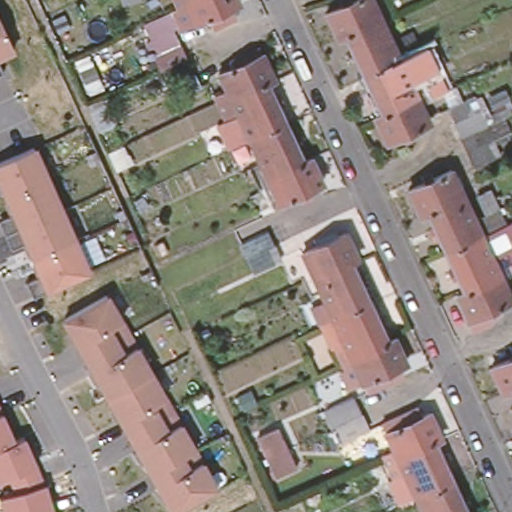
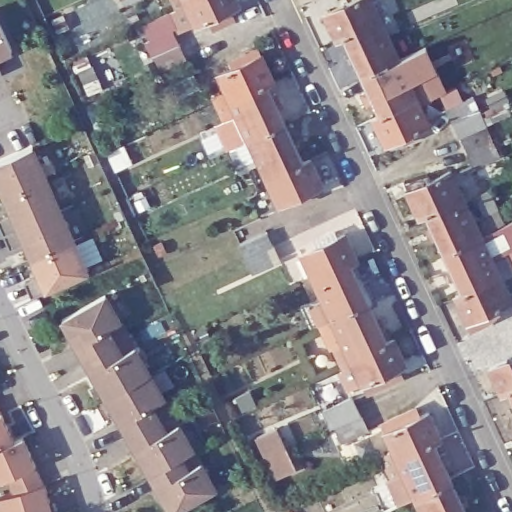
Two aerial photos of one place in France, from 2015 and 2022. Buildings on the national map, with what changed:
unchanged [(237,6),(227,10),(231,21),(213,28),(210,28),(207,20),(195,25),(193,25),(192,21),(175,28),(167,12),(174,9),(170,0),(235,0),(237,6)]
unchanged [(349,46),(341,49),(330,25),(372,5),(384,29),(349,46)]
unchanged [(0,54),(0,27),(10,49),(0,54)]
unchanged [(367,84),(349,46),(384,29),(391,45),(402,69),(367,84)]
unchanged [(185,62),(159,73),(151,59),(145,44),(171,33),(178,48),(184,60),(185,62)]
unchanged [(215,119),(222,116),(214,97),(212,94),(226,89),(217,70),(232,64),(229,58),(247,50),(249,56),(260,51),(272,76),(265,79),(284,119),(285,121),(302,158),(267,174),(260,159),(248,135),(227,145),(215,119)]
unchanged [(430,60),(435,74),(415,82),(410,69),(430,60)]
unchanged [(0,73),(0,69),(2,72),(0,73)]
unchanged [(427,136),(389,154),(377,128),(385,124),(369,88),(367,84),(402,69),(413,92),(427,86),(435,106),(435,108),(423,114),(432,133),(427,136)]
unchanged [(192,76),(197,90),(172,102),(165,87),(192,76)]
unchanged [(467,152),(460,137),(454,122),(447,108),(472,97),(478,111),(485,125),(492,141),(500,156),(475,168),(467,152)]
unchanged [(9,196),(2,179),(0,180),(0,162),(37,146),(50,177),(9,196)]
unchanged [(302,158),(310,154),(320,179),(279,200),(267,174),(302,158)]
unchanged [(425,213),(418,216),(407,191),(450,171),(462,196),(425,213)]
unchanged [(9,196),(50,177),(64,208),(53,214),(8,234),(2,219),(17,212),(9,196)]
unchanged [(480,235),(444,252),(443,249),(425,213),(462,196),(470,213),(480,235)]
unchanged [(53,214),(64,208),(77,239),(37,257),(30,241),(14,248),(8,234),(53,214)]
unchanged [(246,258),(245,256),(239,244),(265,232),(272,246),(280,261),(252,273),(246,258)]
unchanged [(301,255),(344,235),(355,260),(349,263),(312,279),(301,255)]
unchanged [(444,252),(480,235),(491,259),(499,276),(463,291),(444,252)]
unchanged [(44,274),(37,257),(77,239),(92,271),(35,296),(29,281),(44,274)]
unchanged [(349,263),(367,302),(331,319),(319,294),(312,279),(349,263)]
unchanged [(455,295),(463,291),(499,276),(510,300),(497,307),(499,311),(484,324),(472,329),(467,320),(455,295)]
unchanged [(83,306),(105,294),(127,333),(112,341),(84,357),(62,318),(83,306)]
unchanged [(385,341),(350,359),(342,344),(331,319),(367,302),(368,305),(385,341)]
unchanged [(135,380),(105,396),(84,357),(112,341),(127,333),(149,372),(135,380)]
unchanged [(365,393),(360,383),(347,389),(338,370),(343,368),(352,364),(350,359),(385,341),(392,338),(404,364),(394,368),(398,377),(365,393)]
unchanged [(508,389),(500,392),(490,367),(512,357),(512,387),(508,389)]
unchanged [(149,423),(127,435),(105,396),(135,380),(149,372),(170,410),(149,423)]
unchanged [(508,389),(512,387),(512,398),(508,389)]
unchanged [(340,443),(333,426),(330,428),(322,410),(350,397),(359,414),(366,429),(340,443)]
unchanged [(156,470),(150,473),(127,435),(149,423),(170,410),(192,449),(156,470)]
unchanged [(402,473),(390,478),(382,461),(380,457),(392,451),(385,434),(380,426),(414,410),(417,418),(427,414),(439,438),(432,442),(449,478),(450,481),(414,497),(402,473)]
unchanged [(0,446),(0,411),(13,440),(0,446)]
unchanged [(16,438),(22,436),(43,482),(14,491),(7,476),(0,480),(0,446),(13,440),(16,438)]
unchanged [(156,470),(192,449),(215,488),(196,498),(172,512),(171,512),(150,473),(156,470)]
unchanged [(421,512),(414,497),(450,481),(464,512),(421,512)]
unchanged [(14,491),(43,482),(44,482),(53,512),(2,512),(0,505),(0,495),(2,495),(14,491)]

